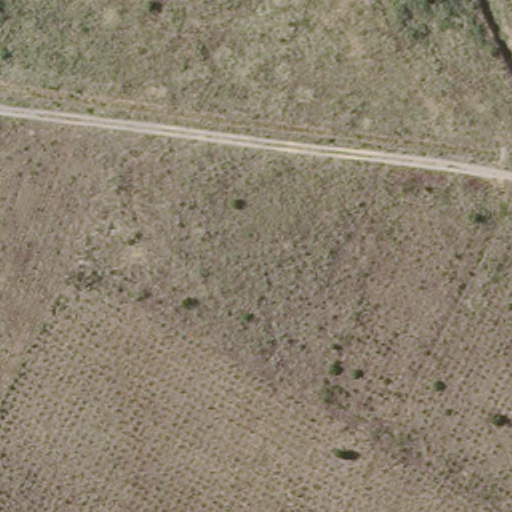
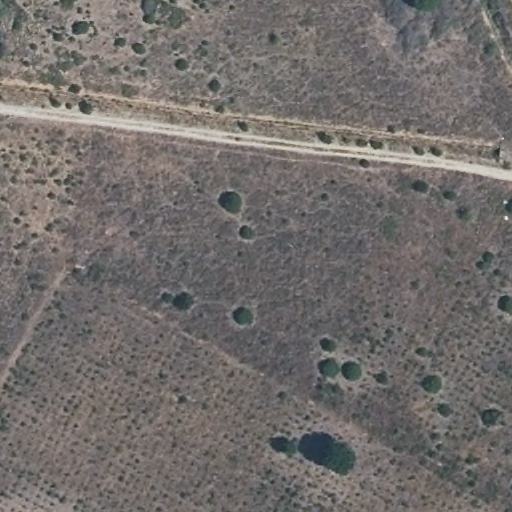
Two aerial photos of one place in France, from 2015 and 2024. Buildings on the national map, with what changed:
[]

